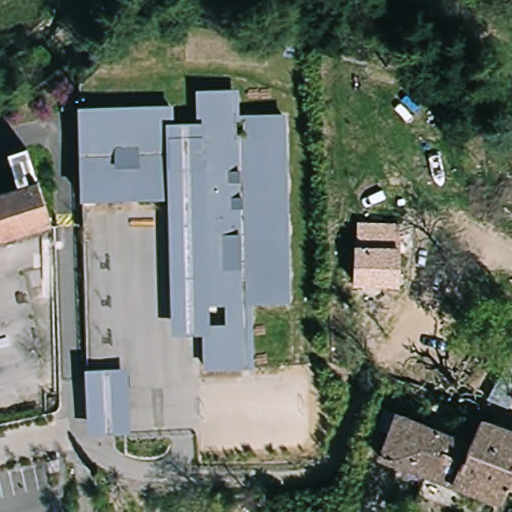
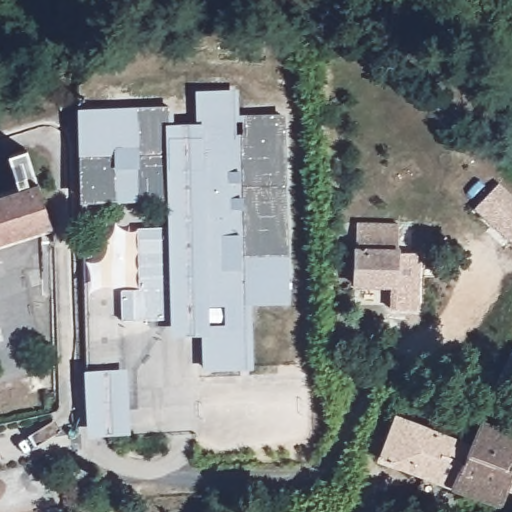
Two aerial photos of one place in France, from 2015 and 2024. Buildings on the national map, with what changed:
unchanged [(174,105),(174,124),(198,124),(196,91),(238,90),(238,115),(286,114),(290,305),(253,306),(254,369),(204,369),(203,337),(174,338),(168,199),(81,201),(79,108),(174,105)]
unchanged [(0,194),(23,187),(13,155),(32,149),(56,227),(0,244),(0,194)]
new [(504,238),(480,217),(465,204),(485,180),(501,193),(512,203),(512,229),(504,238)]
unchanged [(356,287),(361,218),(404,220),(404,288),(356,287)]
unchanged [(128,370),(131,435),(88,437),(87,371),(128,370)]
unchanged [(508,383),(512,375),(512,385),(508,383)]
unchanged [(507,505),(382,459),(399,412),(462,435),(464,427),(479,432),(483,422),(497,427),(498,423),(501,416),(512,421),(512,489),(507,505)]

